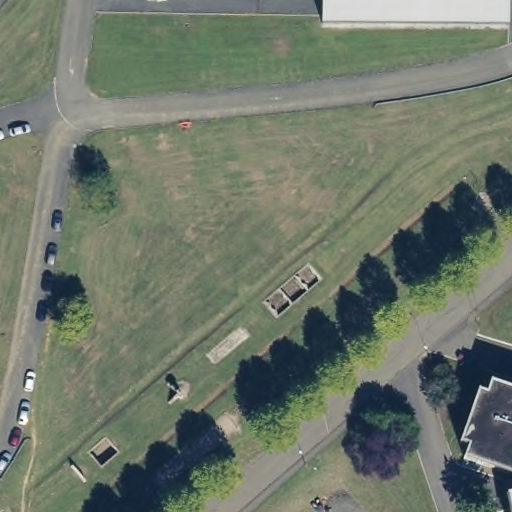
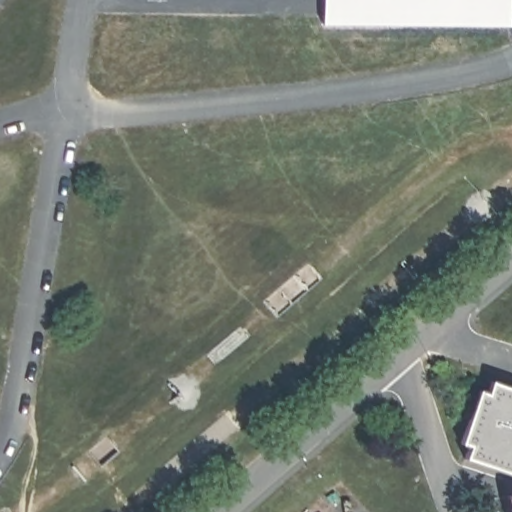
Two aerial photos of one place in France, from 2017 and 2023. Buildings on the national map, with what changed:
unchanged [(505,26),(322,27),(322,0),(505,0),(505,26)]
unchanged [(462,461),(469,447),(457,443),(477,387),(486,392),(491,378),(512,386),(512,475),(462,461)]
unchanged [(506,512),(503,497),(512,495),(512,512),(506,512)]

